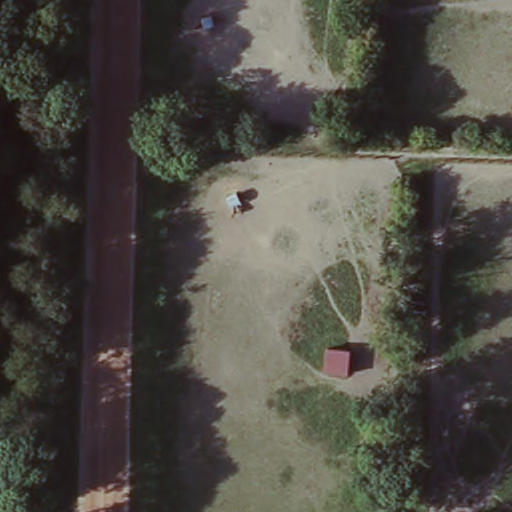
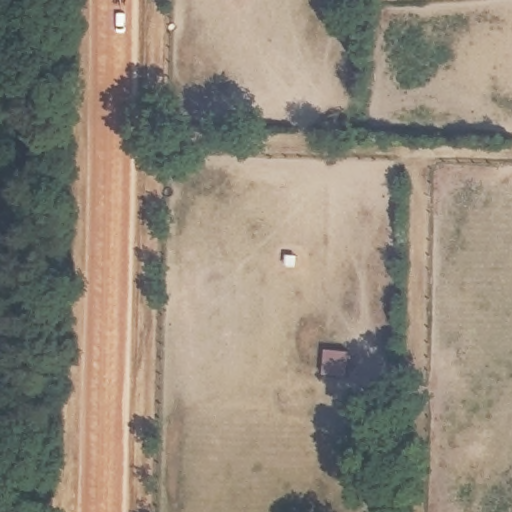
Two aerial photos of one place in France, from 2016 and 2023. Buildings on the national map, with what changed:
[]

